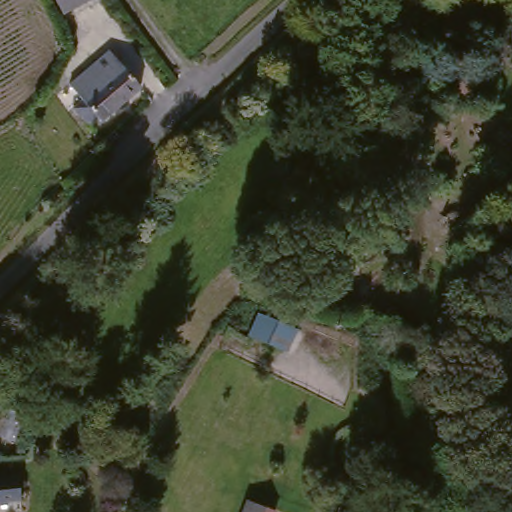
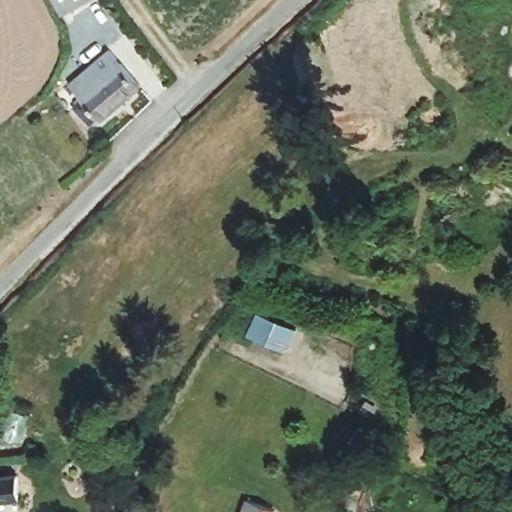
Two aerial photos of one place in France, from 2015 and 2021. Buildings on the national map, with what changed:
unchanged [(54,16),(45,0),(82,0),(54,16)]
unchanged [(100,125),(96,125),(91,129),(74,108),(81,101),(69,87),(107,51),(139,89),(100,125)]
unchanged [(295,331),(287,354),(248,339),(257,316),(295,331)]
unchanged [(0,509),(0,478),(16,477),(18,508),(0,509)]
unchanged [(267,512),(234,512),(239,500),(267,512)]

